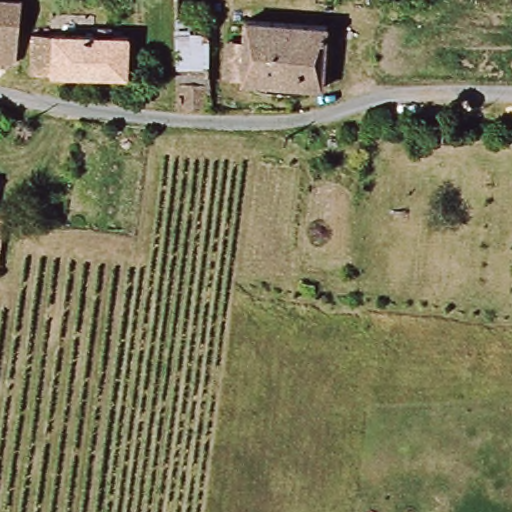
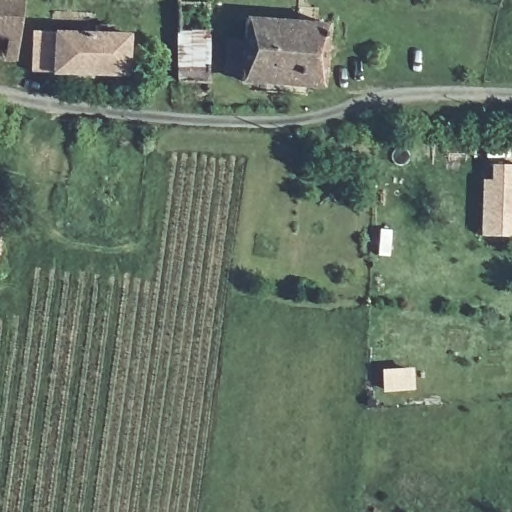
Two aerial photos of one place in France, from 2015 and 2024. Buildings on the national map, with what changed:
unchanged [(0,57),(0,0),(17,0),(15,58),(0,57)]
unchanged [(176,107),(176,0),(208,0),(208,109),(176,107)]
unchanged [(326,23),(320,86),(241,78),(242,74),(227,73),(233,19),(247,20),(247,15),(326,23)]
unchanged [(31,74),(33,34),(128,38),(127,77),(31,74)]
new [(481,235),(481,180),(491,180),(491,165),(512,165),(512,236),(481,235)]
unchanged [(0,205),(5,205),(0,237),(0,205)]

